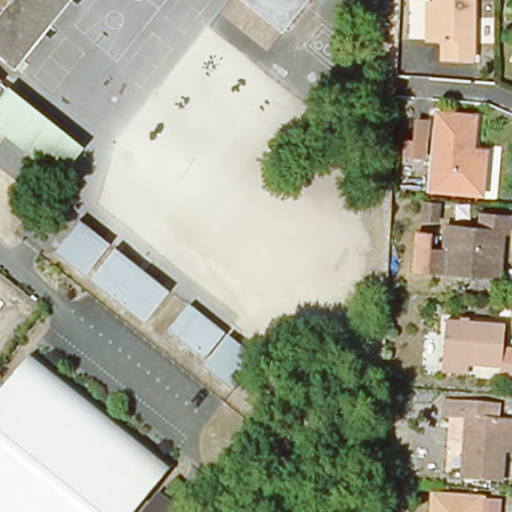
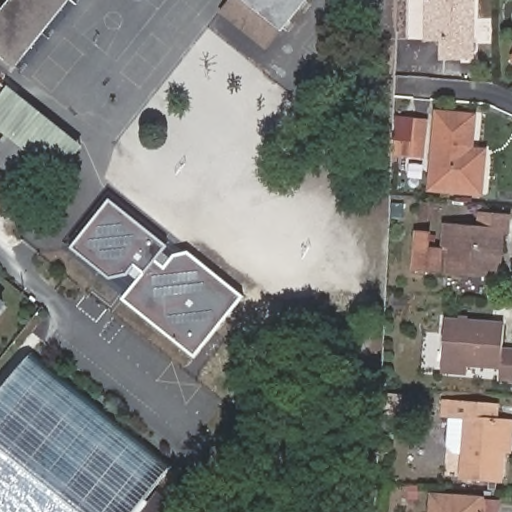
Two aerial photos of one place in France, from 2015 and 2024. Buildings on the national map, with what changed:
unchanged [(10,71),(0,63),(0,8),(6,0),(67,0),(10,71)]
unchanged [(277,34),(263,51),(212,11),(221,0),(234,0),(277,34)]
unchanged [(277,34),(234,0),(303,0),(277,34)]
unchanged [(424,0),(472,0),(470,56),(440,56),(440,39),(431,38),(423,38),(424,0)]
unchanged [(512,56),(512,60),(510,59),(512,56)]
unchanged [(0,98),(8,89),(82,148),(58,180),(0,133),(0,98)]
unchanged [(428,111),(462,114),(459,154),(475,155),(471,192),(421,189),(428,111)]
new [(175,255),(187,251),(242,297),(194,357),(124,300),(137,283),(128,273),(116,285),(72,247),(110,201),(166,245),(160,254),(170,260),(175,255)]
unchanged [(437,275),(410,273),(412,236),(427,237),(426,252),(439,253),(441,232),(468,234),(469,219),(502,222),(500,237),(496,236),(493,280),(475,278),(457,277),(437,275)]
demolished [(54,252),(78,222),(107,246),(83,276),(54,252)]
demolished [(92,276),(113,250),(177,302),(156,328),(92,276)]
new [(0,314),(0,296),(9,302),(0,314)]
demolished [(235,347),(214,373),(179,345),(200,319),(235,347)]
unchanged [(436,368),(437,358),(441,320),(499,324),(497,350),(512,351),(510,379),(495,378),(496,363),(463,360),(462,371),(436,368)]
unchanged [(176,463),(150,496),(153,499),(153,500),(154,500),(155,501),(156,501),(157,500),(158,500),(160,496),(161,495),(162,495),(163,495),(163,494),(164,494),(165,494),(165,495),(166,495),(185,510),(185,511),(186,511),(186,512),(0,512),(0,395),(37,349),(176,463)]
unchanged [(455,475),(457,450),(442,449),(445,416),(446,401),(493,405),(491,423),(501,425),(509,425),(508,446),(500,446),(498,480),(455,475)]
unchanged [(476,498),(475,512),(429,512),(430,495),(476,498)]

